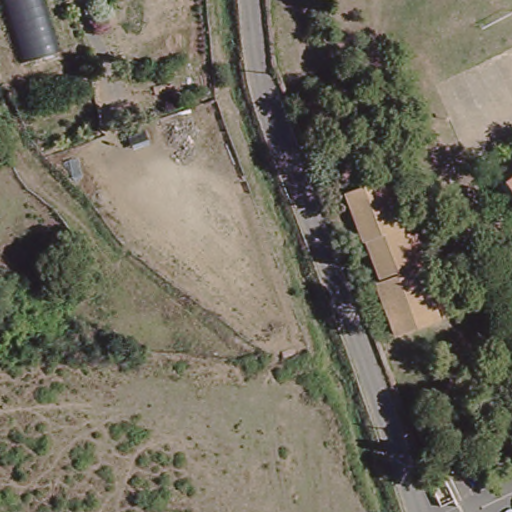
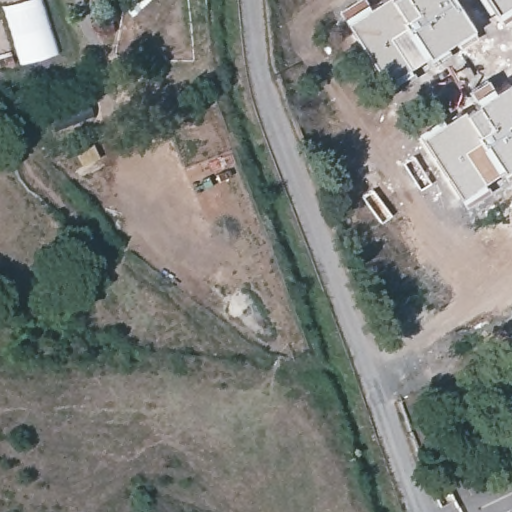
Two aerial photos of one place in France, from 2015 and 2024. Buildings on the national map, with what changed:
new [(61,52),(25,64),(3,0),(44,0),(61,52)]
new [(357,0),(364,0),(368,6),(378,0),(453,0),(471,28),(452,40),(385,85),(366,57),(338,12),(357,0)]
new [(512,14),(511,14),(510,11),(492,20),(481,0),(512,0),(512,14)]
new [(437,117),(441,122),(461,109),(461,110),(473,102),(470,97),(466,89),(484,79),(492,90),(505,82),(512,92),(512,175),(506,179),(500,169),(482,181),(488,190),(464,205),(458,197),(415,132),(437,117)]
unchanged [(445,316),(402,334),(380,280),(385,278),(370,237),(367,238),(349,190),(385,177),(404,224),(407,223),(423,264),(425,263),(445,316)]

